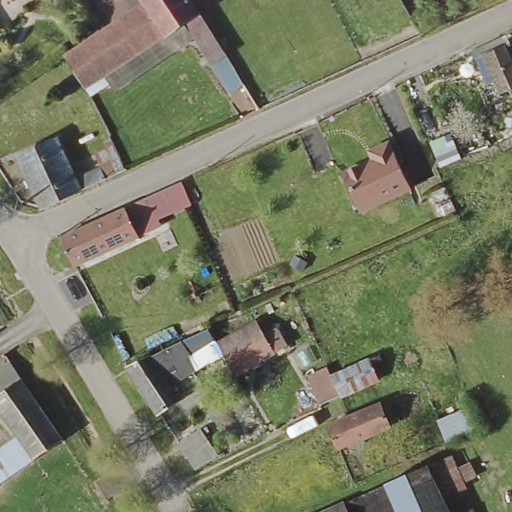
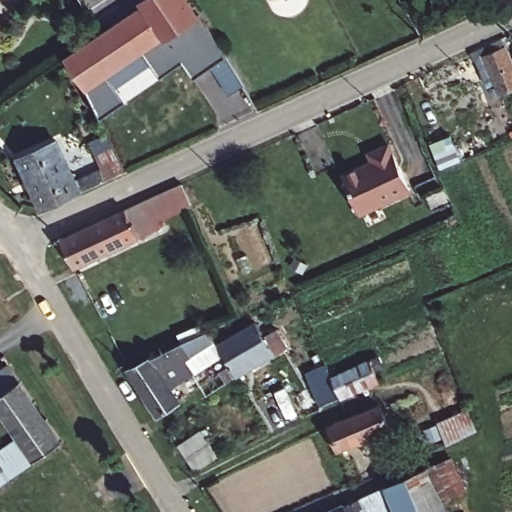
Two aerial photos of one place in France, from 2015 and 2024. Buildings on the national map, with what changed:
unchanged [(221,74),(197,37),(187,24),(169,35),(167,34),(147,2),(145,0),(193,0),(235,65),(245,82),(232,90),(221,74)]
unchanged [(69,55),(147,2),(167,34),(169,35),(187,24),(197,37),(123,87),(118,79),(95,94),(90,85),(69,55)]
unchanged [(485,63),(478,66),(475,59),(505,45),(509,53),(506,54),(512,68),(512,98),(502,102),(485,63)]
unchanged [(444,140),(449,150),(457,147),(462,160),(442,169),(431,145),(444,140)]
unchanged [(20,160),(57,143),(76,184),(117,165),(119,169),(124,167),(126,172),(43,210),(20,160)]
unchanged [(412,190),(363,214),(346,177),(377,162),(374,154),(392,145),(412,190)]
unchanged [(162,221),(165,229),(78,269),(64,240),(184,185),(194,206),(162,221)]
unchanged [(223,367),(228,365),(232,362),(222,346),(257,326),(265,340),(279,332),(287,348),(240,376),(239,374),(235,376),(230,379),(223,367)]
unchanged [(210,333),(217,345),(220,349),(221,352),(209,359),(207,355),(190,362),(197,376),(174,390),(182,404),(160,417),(130,369),(210,333)]
unchanged [(307,376),(330,367),(335,378),(337,377),(375,362),(383,358),(391,378),(384,382),(345,397),(342,398),(320,407),(307,376)]
unchanged [(17,438),(0,413),(0,372),(3,370),(0,365),(7,360),(64,445),(0,488),(0,451),(17,438)]
unchanged [(382,408),(384,410),(419,395),(427,415),(339,452),(330,430),(382,408)]
unchanged [(202,434),(219,460),(196,475),(180,448),(202,434)]
unchanged [(333,512),(358,500),(427,469),(448,512),(333,512)]

